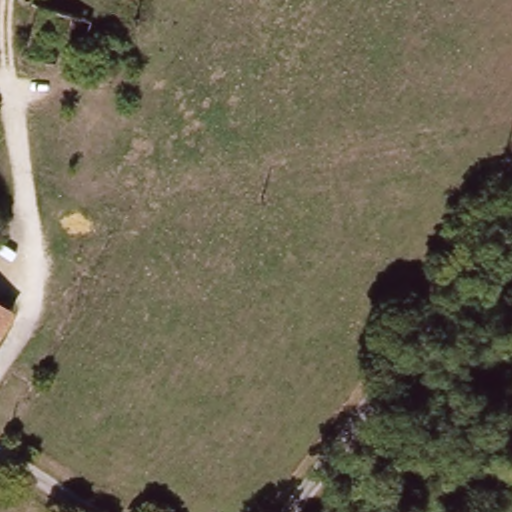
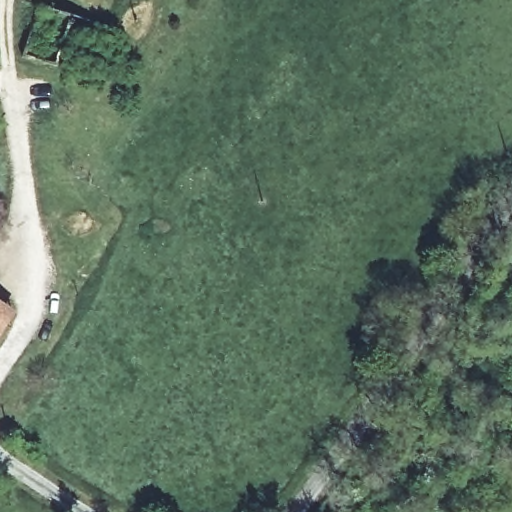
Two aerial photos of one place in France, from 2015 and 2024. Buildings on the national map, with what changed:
unchanged [(6,313),(0,329),(0,310),(6,313)]

